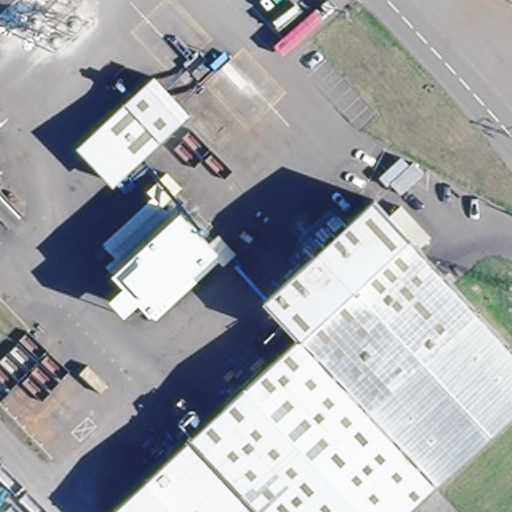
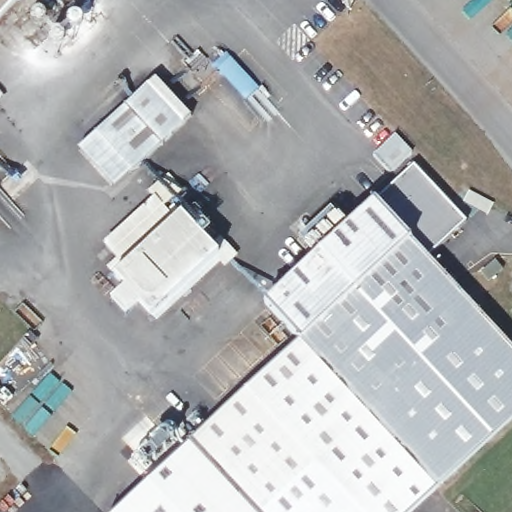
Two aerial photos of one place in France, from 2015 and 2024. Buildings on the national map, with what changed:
unchanged [(0,0),(10,0),(0,10),(0,0)]
unchanged [(149,81),(184,119),(132,167),(97,129),(149,81)]
unchanged [(114,185),(78,146),(97,129),(132,167),(114,185)]
new [(412,165),(466,222),(427,255),(374,201),(412,165)]
unchanged [(258,301),(369,195),(374,201),(427,255),(512,345),(512,408),(403,512),(107,512),(292,335),(258,301)]
unchanged [(115,297),(129,284),(116,270),(181,210),(220,251),(154,312),(144,302),(131,315),(115,297)]

